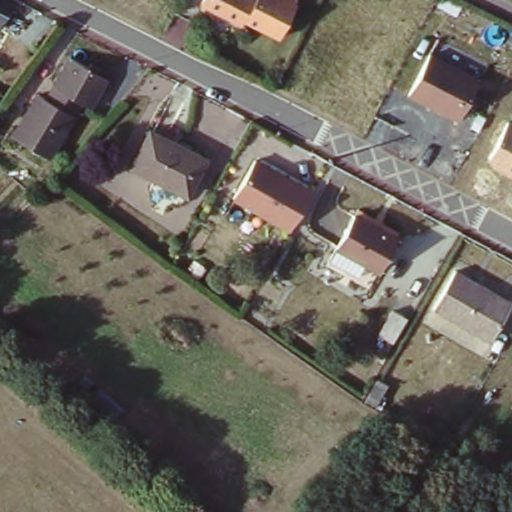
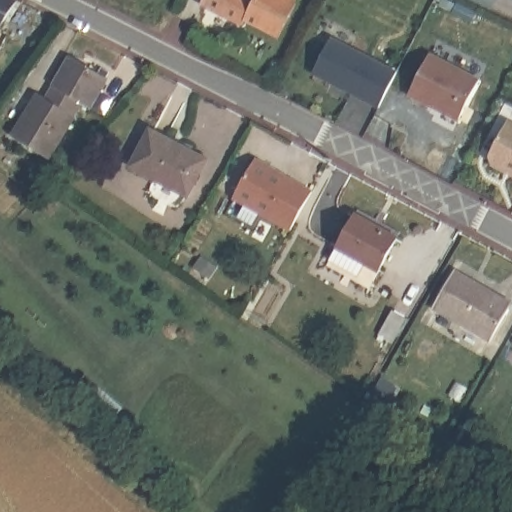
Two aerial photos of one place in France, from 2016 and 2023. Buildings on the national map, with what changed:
unchanged [(0,22),(0,0),(13,0),(0,22)]
unchanged [(208,0),(302,0),(283,38),(251,23),(248,27),(205,5),(208,0)]
new [(400,69),(381,107),(312,72),(332,35),(400,69)]
unchanged [(428,52),(478,80),(457,121),(406,95),(428,52)]
unchanged [(44,95),(50,100),(77,61),(105,80),(88,108),(80,103),(44,156),(16,137),(44,95)]
unchanged [(512,178),(491,167),(488,156),(506,118),(512,121),(512,178)]
unchanged [(131,166),(151,127),(206,157),(185,194),(131,166)]
unchanged [(256,158),(315,190),(292,230),(238,198),(256,158)]
unchanged [(393,239),(377,271),(333,248),(351,217),(393,239)]
unchanged [(510,301),(492,340),(434,311),(451,274),(510,301)]
unchanged [(392,377),(383,394),(372,389),(381,371),(392,377)]

